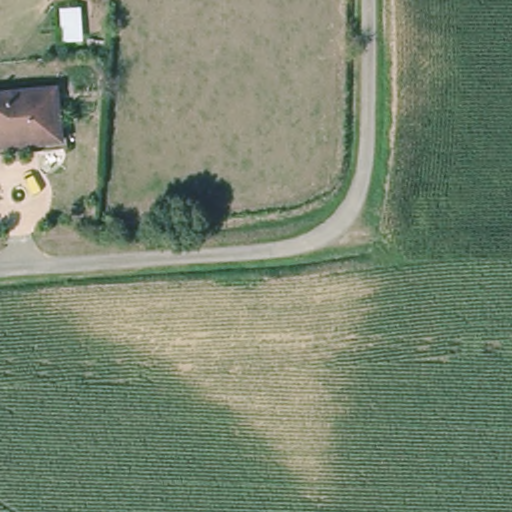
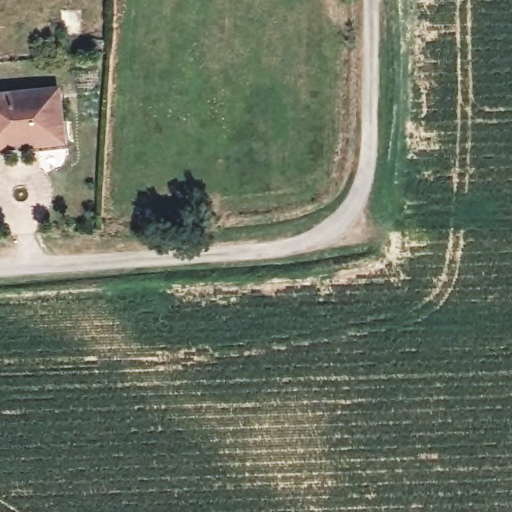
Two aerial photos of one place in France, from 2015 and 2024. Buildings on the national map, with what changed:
unchanged [(0,150),(0,92),(58,84),(65,145),(0,150)]

